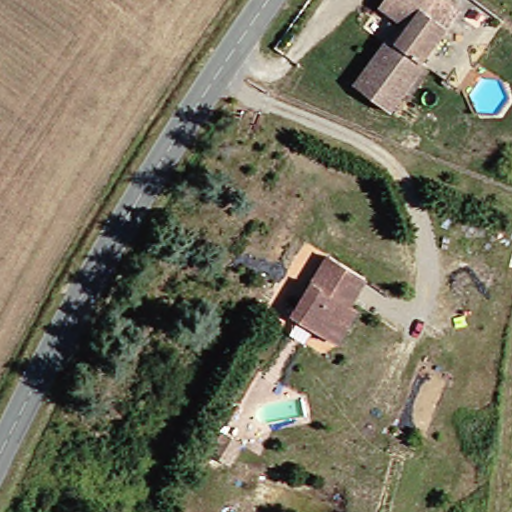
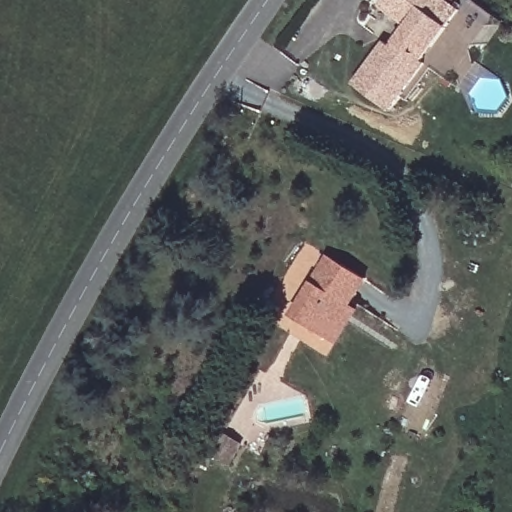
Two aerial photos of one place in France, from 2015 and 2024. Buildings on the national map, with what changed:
unchanged [(448,25),(425,56),(435,65),(402,117),(361,88),(389,45),(400,50),(412,30),(393,16),(378,5),(382,0),(444,0),(434,15),(448,25)]
unchanged [(343,343),(335,337),(296,312),(335,255),(372,278),(354,306),(362,312),(343,343)]
unchanged [(238,445),(225,468),(203,456),(216,433),(238,445)]

